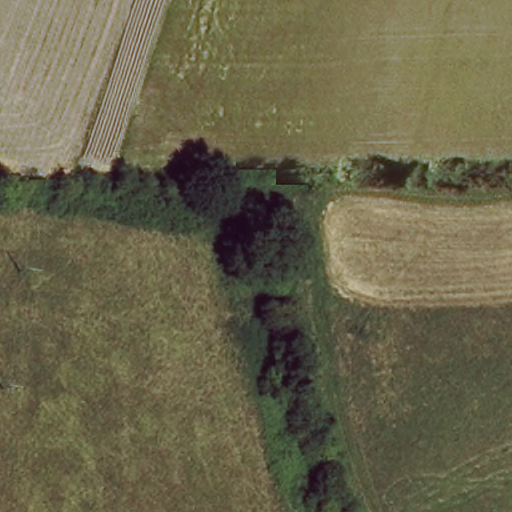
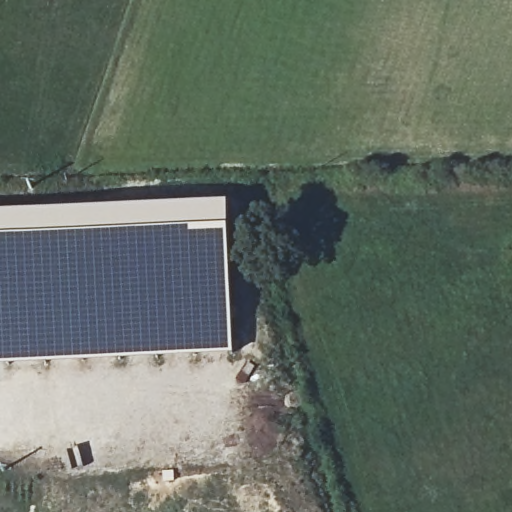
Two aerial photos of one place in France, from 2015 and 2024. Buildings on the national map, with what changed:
new [(229,203),(235,356),(0,364),(0,211),(229,203)]

